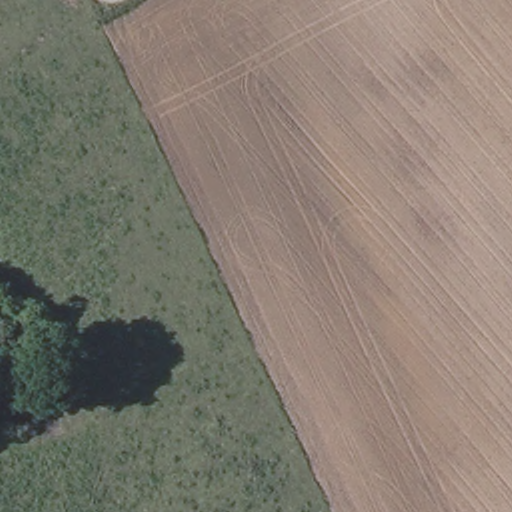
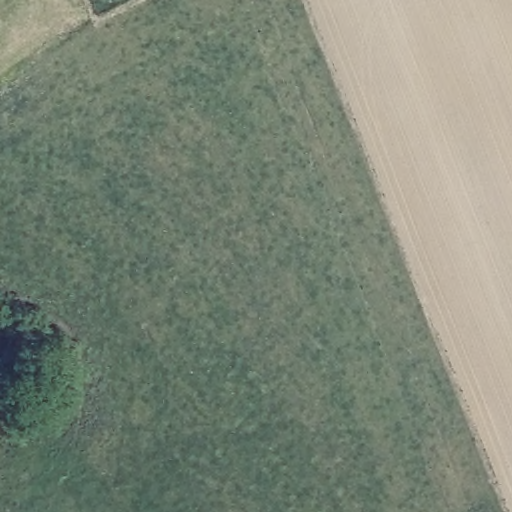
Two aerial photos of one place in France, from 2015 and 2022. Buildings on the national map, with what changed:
[]

